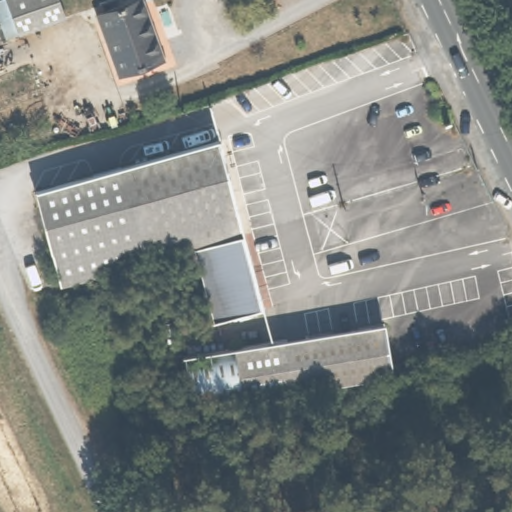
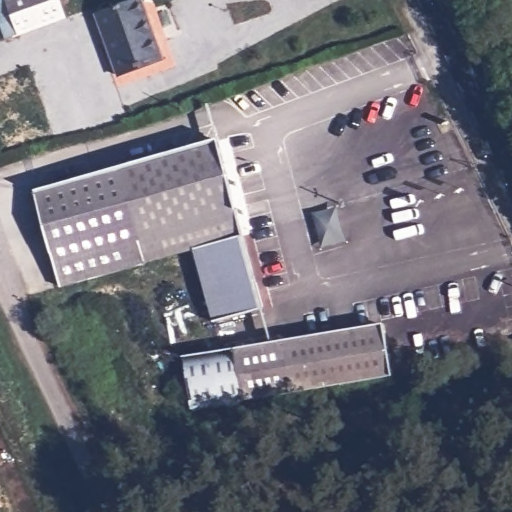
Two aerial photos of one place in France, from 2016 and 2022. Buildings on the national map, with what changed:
unchanged [(10,41),(0,14),(0,0),(61,0),(67,19),(10,41)]
unchanged [(118,74),(97,12),(130,0),(145,0),(166,57),(118,74)]
unchanged [(193,249),(61,281),(39,185),(214,140),(238,238),(193,249)]
unchanged [(256,310),(210,318),(193,249),(238,238),(256,310)]
unchanged [(388,378),(236,400),(237,405),(192,411),(185,359),(382,329),(388,378)]

